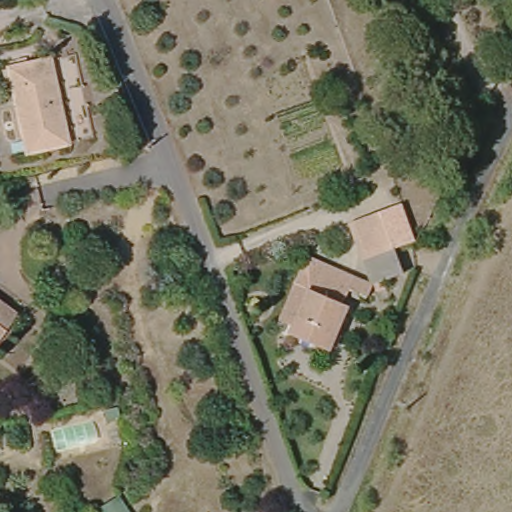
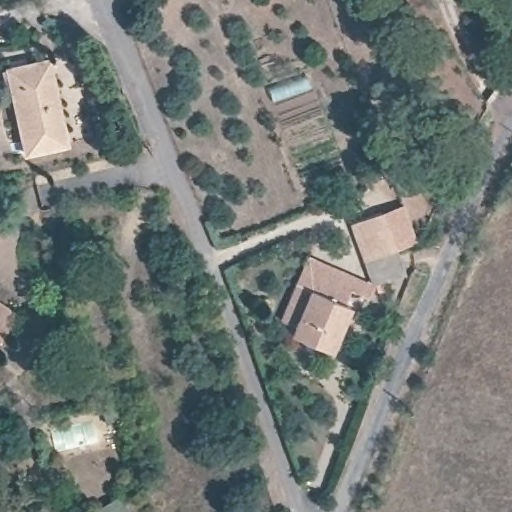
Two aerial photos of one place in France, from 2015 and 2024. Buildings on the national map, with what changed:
unchanged [(31,146),(13,61),(45,56),(55,54),(58,74),(70,137),(31,146)]
unchanged [(407,206),(420,247),(397,254),(383,215),(407,206)]
unchanged [(405,276),(374,287),(362,250),(353,225),(383,215),(405,276)]
unchanged [(317,287),(301,327),(278,319),(307,256),(372,282),(374,287),(367,297),(357,293),(355,301),(317,287)]
unchanged [(337,349),(299,332),(317,287),(355,301),(337,349)]
unchanged [(0,327),(0,298),(13,308),(0,327)]

